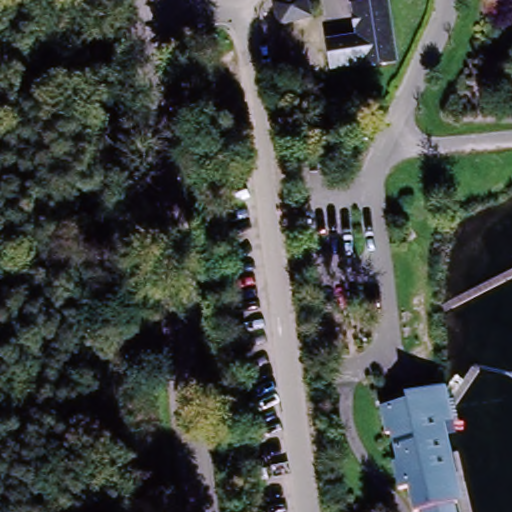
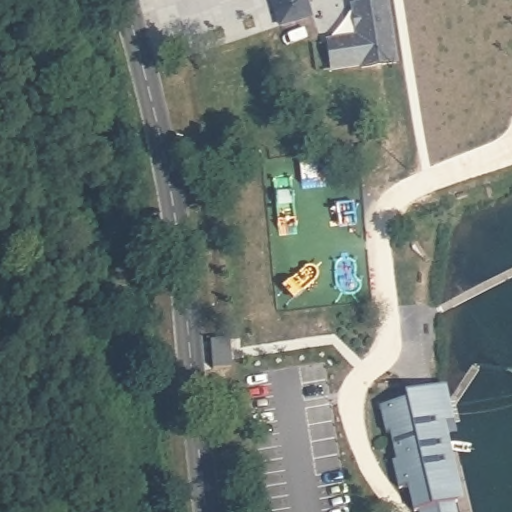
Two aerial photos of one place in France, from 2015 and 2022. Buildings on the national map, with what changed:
unchanged [(283,0),(301,0),(304,16),(284,19),(281,0),(283,0)]
unchanged [(385,2),(389,64),(340,67),(340,65),(326,65),(324,37),(354,35),(353,2),(385,2)]
unchanged [(445,408),(439,450),(447,488),(406,500),(399,478),(392,480),(369,395),(392,388),(389,381),(432,370),(445,408)]

